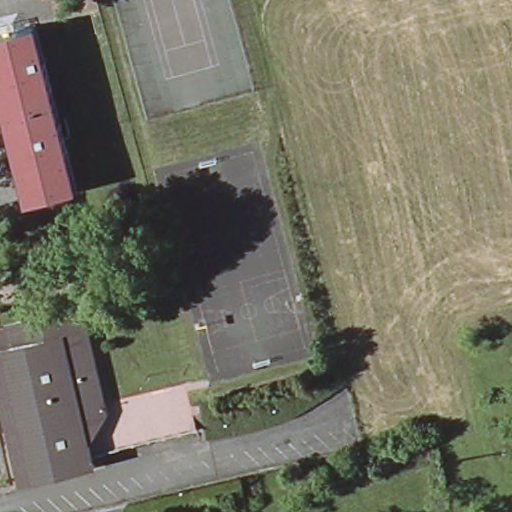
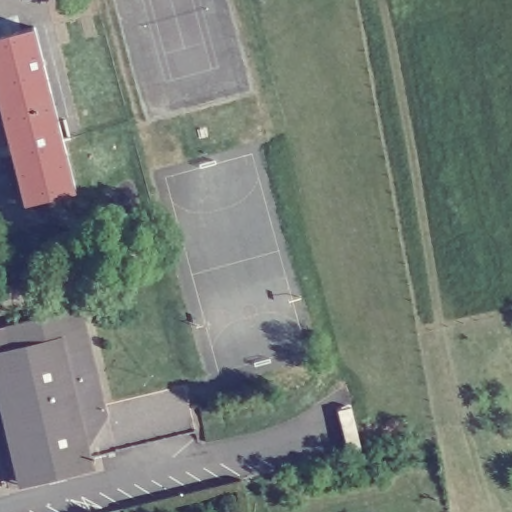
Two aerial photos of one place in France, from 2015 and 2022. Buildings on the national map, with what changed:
unchanged [(31,27),(73,191),(23,204),(10,154),(0,156),(0,35),(31,27)]
unchanged [(135,398),(151,395),(167,390),(184,387),(195,433),(179,437),(162,441),(146,445),(130,448),(113,452),(90,458),(91,464),(85,470),(23,485),(16,480),(0,412),(0,327),(22,322),(55,315),(80,310),(92,360),(102,405),(119,401),(135,398)]

